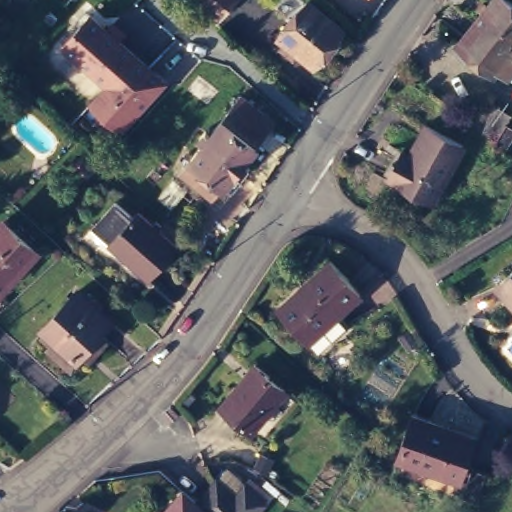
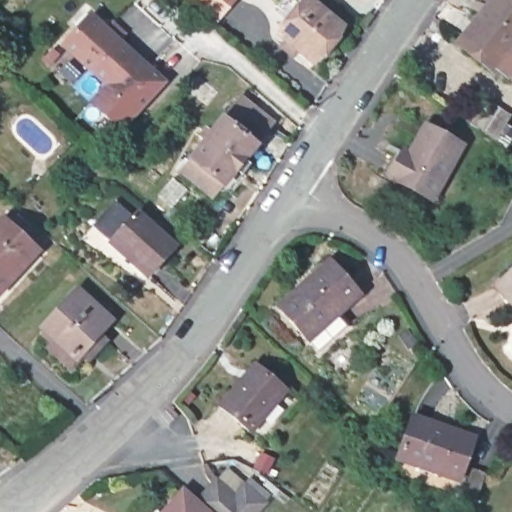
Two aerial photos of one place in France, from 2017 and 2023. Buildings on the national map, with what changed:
unchanged [(230,0),(215,17),(196,0),(230,0)]
unchanged [(290,35),(284,30),(297,13),(282,0),(320,0),(348,23),(319,59),(304,46),(298,53),(285,41),(290,35)]
unchanged [(496,64),(461,35),(489,0),(512,0),(512,65),(506,71),(496,64)]
unchanged [(165,83),(121,130),(92,104),(108,86),(63,46),(90,16),(165,83)]
unchanged [(230,172),(209,199),(176,172),(200,142),(195,138),(201,131),(206,135),(236,96),(244,103),(252,110),(270,123),(238,161),(243,166),(235,176),(230,172)]
unchanged [(486,99),(511,115),(495,141),(470,125),(486,99)]
unchanged [(463,145),(432,201),(388,177),(398,159),(402,151),(409,155),(425,125),(463,145)]
unchanged [(121,201),(139,217),(143,213),(157,226),(161,222),(166,227),(162,230),(180,247),(153,277),(97,226),(121,201)]
unchanged [(36,246),(0,286),(0,219),(3,216),(36,246)]
unchanged [(314,347),(303,336),(273,303),(325,256),(355,289),(331,311),(342,322),(314,347)]
unchanged [(512,271),(512,303),(496,286),(512,271)]
unchanged [(98,346),(93,342),(71,367),(47,346),(56,336),(43,324),(78,286),(110,316),(98,328),(107,336),(98,346)]
unchanged [(246,427),(215,402),(250,360),(281,386),(246,427)]
unchanged [(170,406),(185,422),(176,430),(161,415),(170,406)]
unchanged [(475,433),(460,476),(397,453),(412,411),(475,433)]
unchanged [(486,469),(476,496),(462,491),(472,463),(486,469)]
unchanged [(235,498),(245,487),(263,504),(256,512),(165,512),(173,503),(183,491),(190,497),(197,504),(207,492),(216,481),(223,487),(235,498)]

